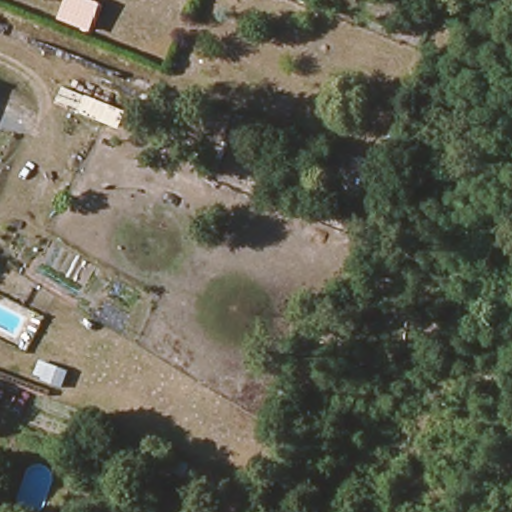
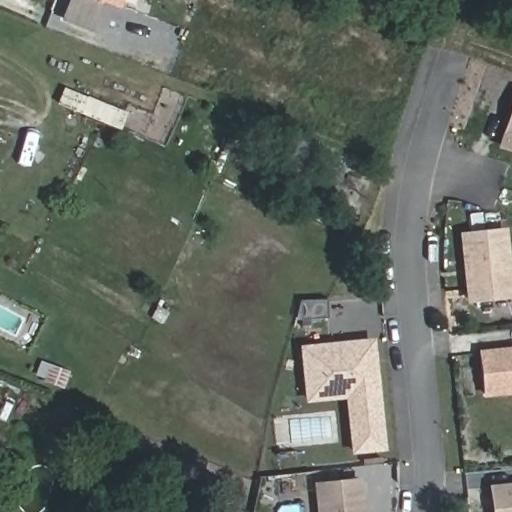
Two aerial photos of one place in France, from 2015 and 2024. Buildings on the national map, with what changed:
new [(88,0),(101,5),(92,29),(64,18),(71,0),(88,0)]
new [(122,0),(119,9),(97,0),(122,0)]
unchanged [(111,106),(103,126),(57,110),(65,89),(111,106)]
new [(499,148),(512,108),(512,152),(499,148)]
new [(467,302),(460,232),(508,227),(512,269),(512,298),(467,302)]
new [(299,300),(327,298),(328,316),(294,317),(299,300)]
new [(378,447),(349,451),(343,395),(321,397),(303,399),(301,380),(298,348),(367,341),(378,447)]
new [(483,397),(477,351),(512,346),(512,394),(483,397)]
unchanged [(146,476),(126,468),(134,450),(154,457),(146,476)]
new [(313,482),(362,477),(366,508),(369,507),(369,512),(316,512),(313,482)]
new [(489,486),(512,483),(512,512),(492,512),(489,486)]

